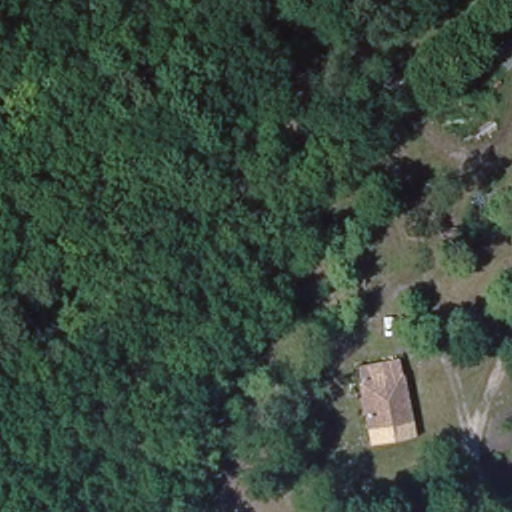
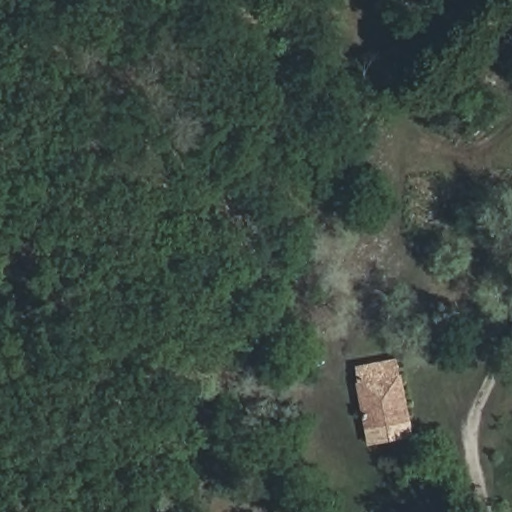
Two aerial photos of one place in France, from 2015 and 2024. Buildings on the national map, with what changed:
unchanged [(396,376),(400,375),(409,423),(363,430),(354,386),(357,385),(353,367),(393,360),(396,376)]

